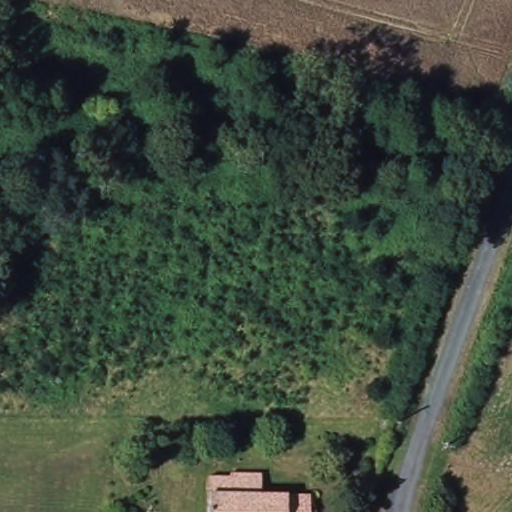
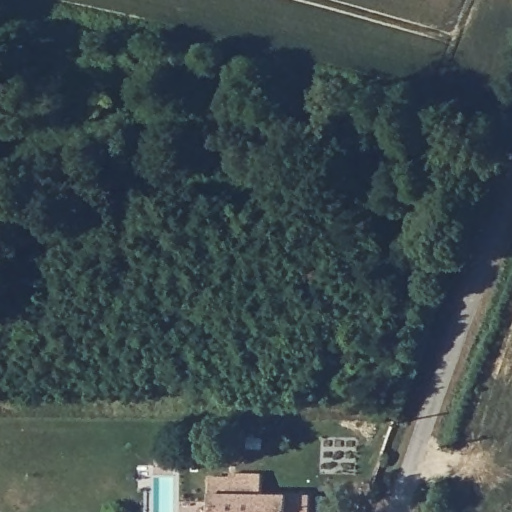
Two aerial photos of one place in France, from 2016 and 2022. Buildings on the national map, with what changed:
unchanged [(315,512),(214,512),(215,477),(235,478),(236,473),(267,474),(267,494),(315,495),(315,512)]

